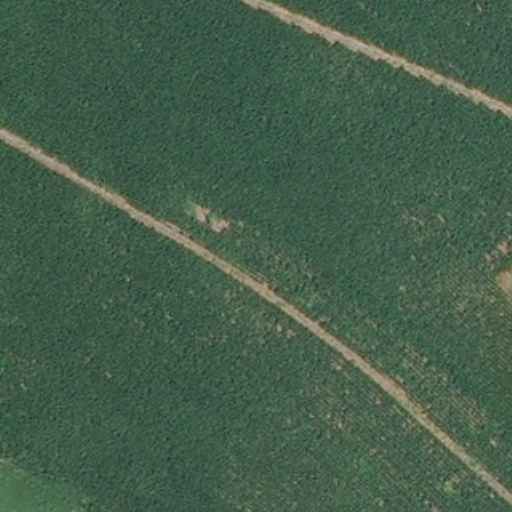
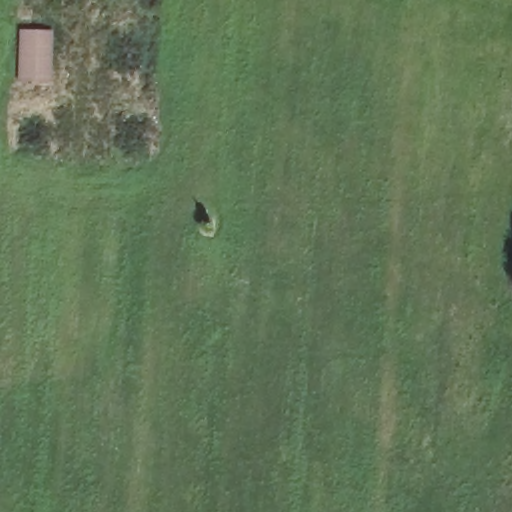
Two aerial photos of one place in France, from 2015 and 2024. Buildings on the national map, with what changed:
new [(19,28),(54,29),(52,83),(17,81),(19,28)]

